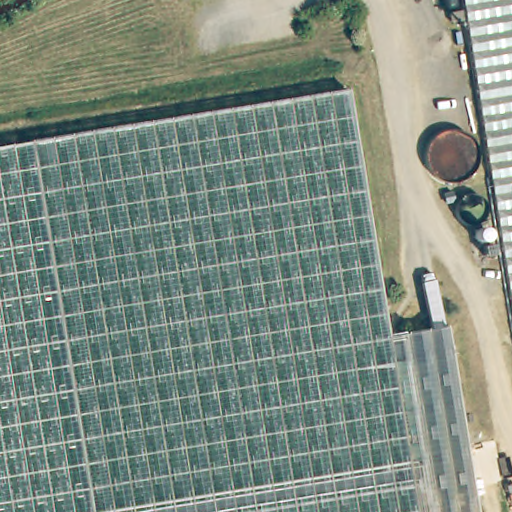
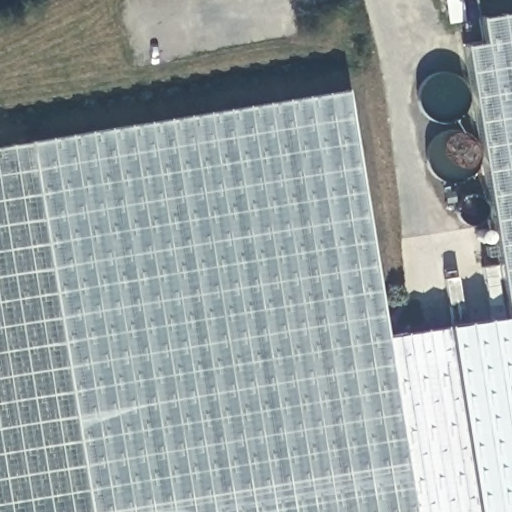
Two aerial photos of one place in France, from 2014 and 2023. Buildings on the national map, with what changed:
unchanged [(512,359),(505,317),(463,47),(483,44),(480,19),(512,13),(512,359)]
unchanged [(476,512),(0,512),(0,149),(338,94),(346,92),(387,338),(446,329),(476,512)]
demolished [(454,126),(457,126),(461,127),(463,129),(467,130),(470,132),(472,135),(474,137),(476,140),(477,144),(478,146),(479,150),(479,154),(478,156),(478,160),(477,163),(476,166),(473,169),(472,172),(469,174),(466,176),(463,177),(460,179),(457,180),(453,180),(450,180),(447,180),(443,179),(440,177),(437,176),(435,174),(432,171),(430,169),(428,166),(427,162),(426,160),(425,156),(425,152),(425,150),(426,146),(427,143),(428,140),(430,137),(432,134),(435,132),(437,130),(441,129),(443,127),(447,126),(451,126),(454,126)]
demolished [(461,193),(462,191),(464,190),(466,190),(468,189),(470,189),(472,189),(474,189),(476,189),(478,190),(480,190),(482,192),(483,193),(485,195),(486,196),(487,199),(487,200),(488,202),(488,205),(488,206),(488,209),(487,210),(487,212),(486,215),(485,216),(483,217),(482,219),(480,220),(477,221),(476,221),(473,222),(472,222),(470,221),(467,221),(466,220),(463,220),(462,219),(460,217),(458,215),(457,214),(457,212),(456,210),(456,208),(455,206),(455,204),(456,202),(456,200),(457,198),(458,196),(459,195),(461,193)]
new [(512,359),(512,512),(476,512),(446,329),(505,317),(512,359)]

